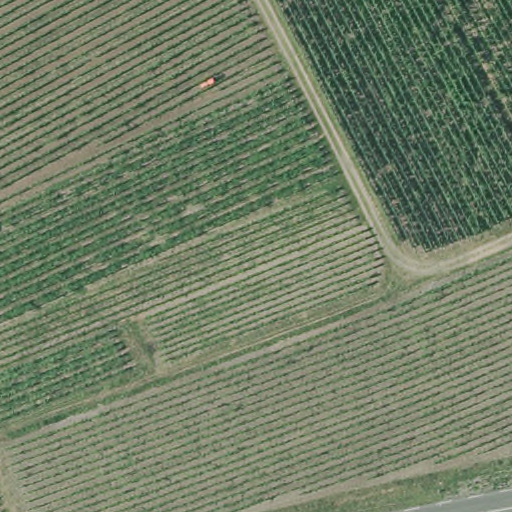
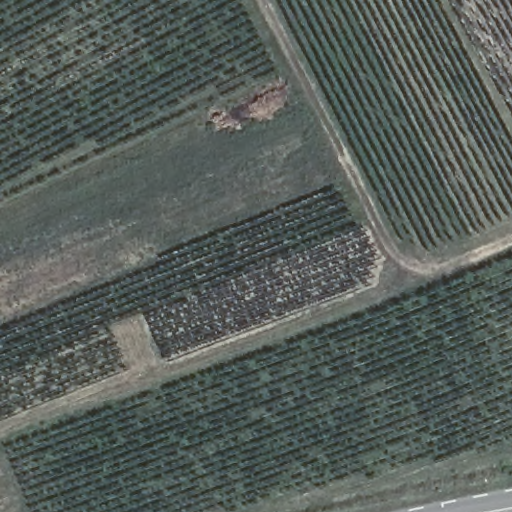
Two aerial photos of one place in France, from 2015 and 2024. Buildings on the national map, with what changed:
[]

